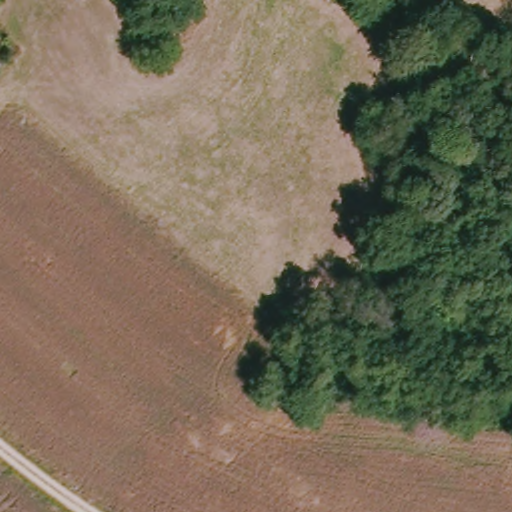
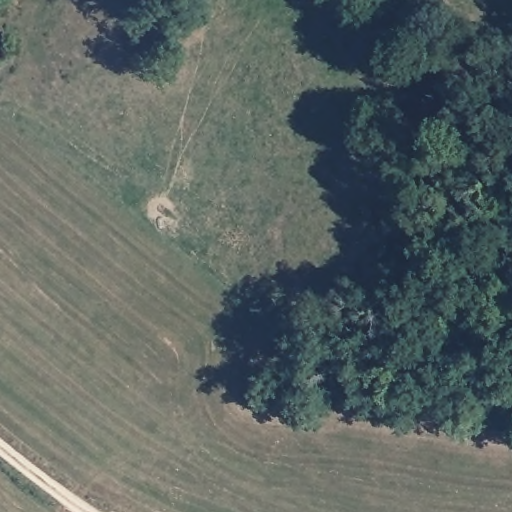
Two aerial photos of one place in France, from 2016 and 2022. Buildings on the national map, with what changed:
unchanged [(5,57),(0,62),(0,52),(5,57)]

